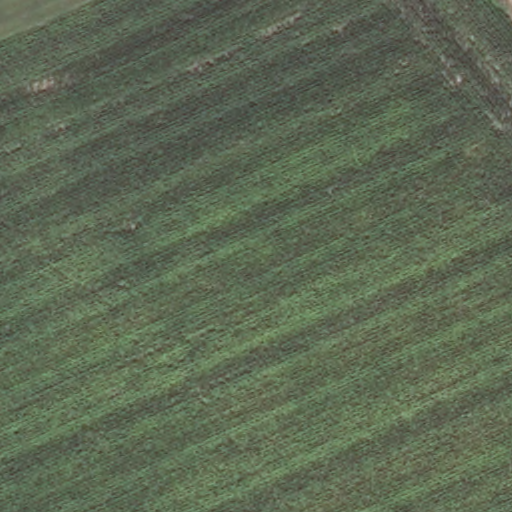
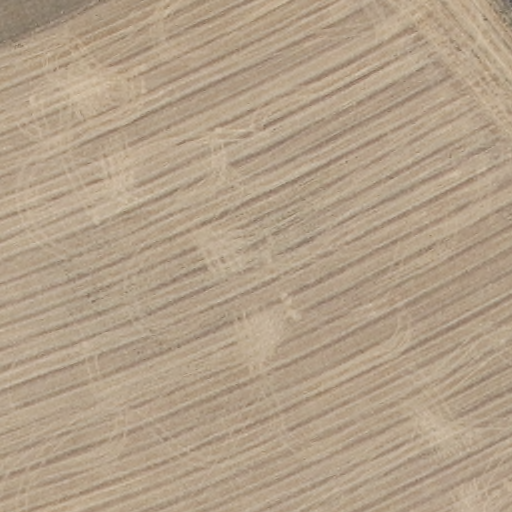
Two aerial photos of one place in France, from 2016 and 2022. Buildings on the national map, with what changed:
[]

